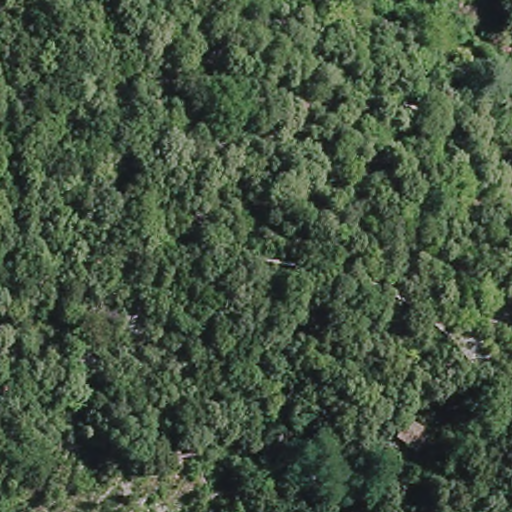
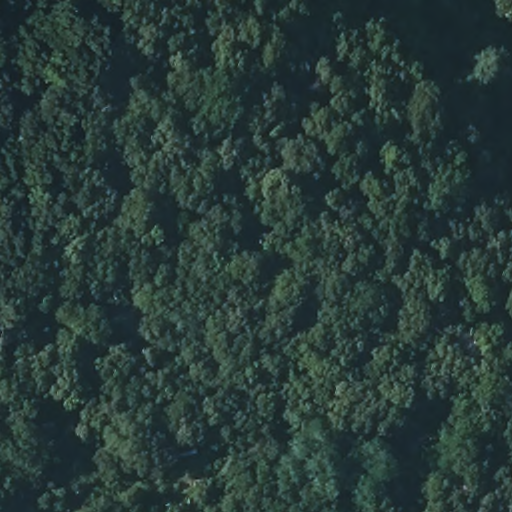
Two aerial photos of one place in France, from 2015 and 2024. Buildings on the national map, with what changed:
unchanged [(204,476),(181,477),(178,447),(202,446),(204,476)]

